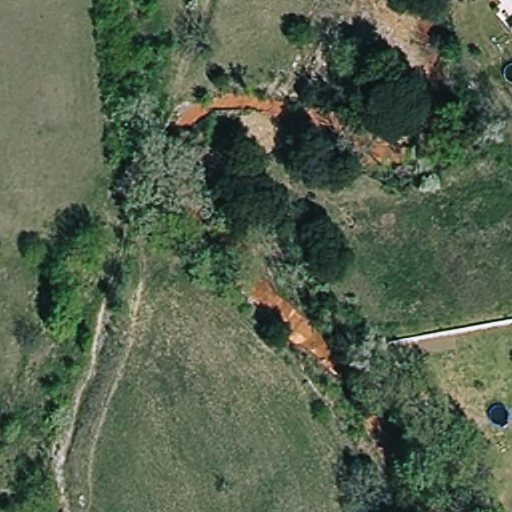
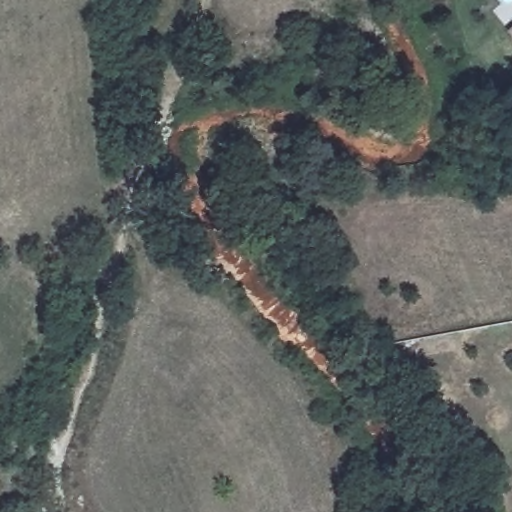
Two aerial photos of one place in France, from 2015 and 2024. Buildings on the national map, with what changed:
unchanged [(512,19),(512,26),(509,21),(512,19)]

